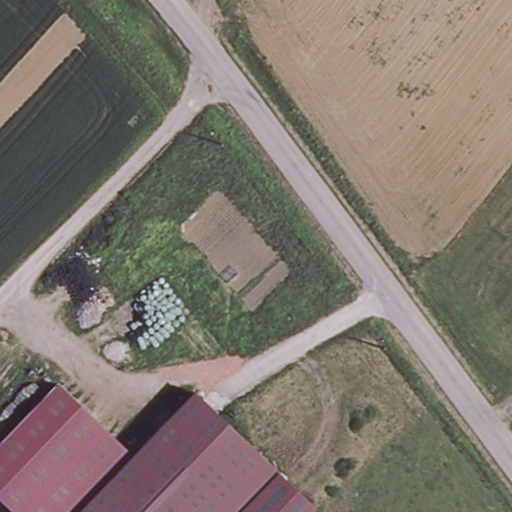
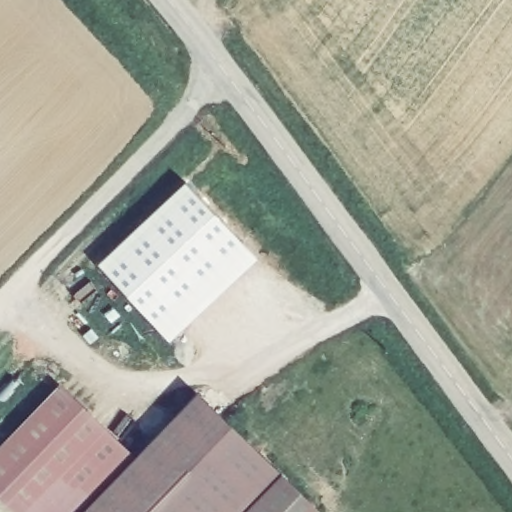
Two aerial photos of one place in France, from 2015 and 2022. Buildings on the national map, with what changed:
new [(252,253),(166,337),(93,263),(181,179),(252,253)]
unchanged [(77,512),(24,512),(0,489),(0,445),(63,381),(135,453),(77,512)]
unchanged [(318,506),(312,512),(80,512),(200,390),(318,506)]

